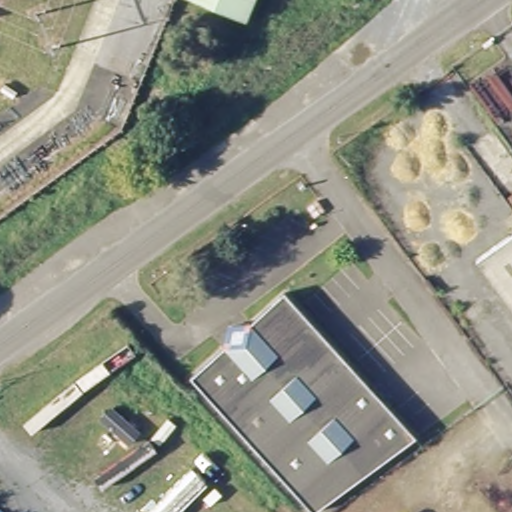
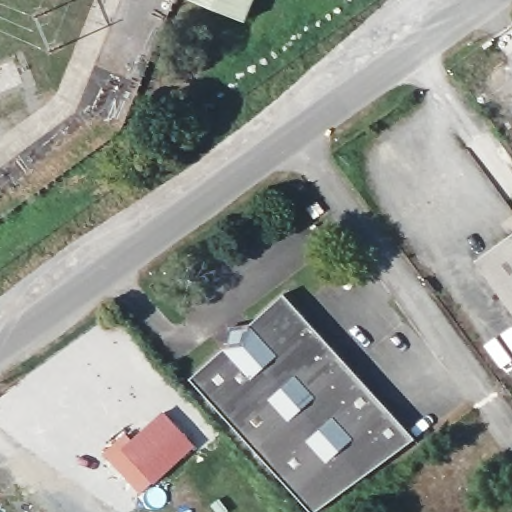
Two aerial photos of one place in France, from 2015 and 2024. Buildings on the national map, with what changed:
unchanged [(240,18),(198,0),(247,0),(240,18)]
unchanged [(319,206),(309,213),(302,203),(312,196),(319,206)]
unchanged [(512,234),(512,304),(479,258),(512,234)]
unchanged [(330,509),(326,512),(312,512),(311,510),(286,482),(238,432),(184,371),(277,287),(297,309),(414,437),(330,509)]
new [(126,431),(132,437),(164,410),(197,446),(141,494),(102,451),(126,431)]

